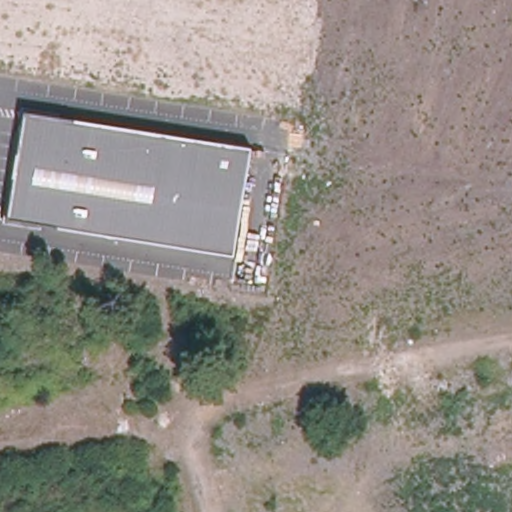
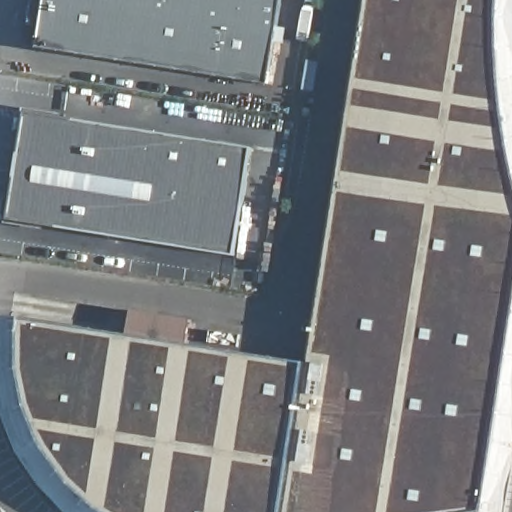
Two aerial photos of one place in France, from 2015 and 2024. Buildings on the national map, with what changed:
new [(46,0),(282,0),(269,84),(38,47),(46,0)]
new [(501,93),(508,138),(512,161),(512,336),(484,512),(284,512),(308,363),(365,0),(498,0),(498,46),(501,93)]
unchanged [(235,256),(6,219),(26,112),(251,149),(235,256)]
new [(98,508),(72,485),(45,445),(28,409),(20,366),(23,318),(308,363),(284,512),(104,512),(98,508)]

